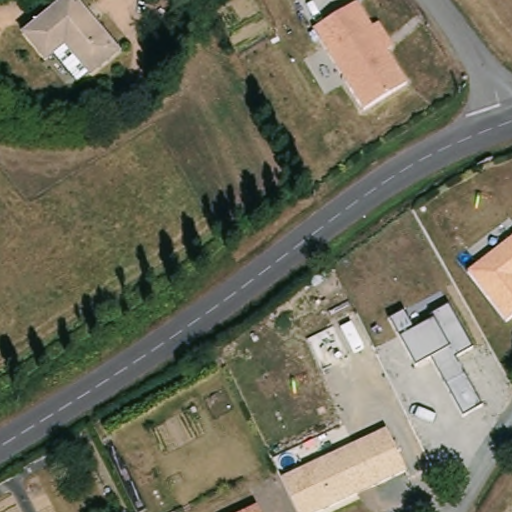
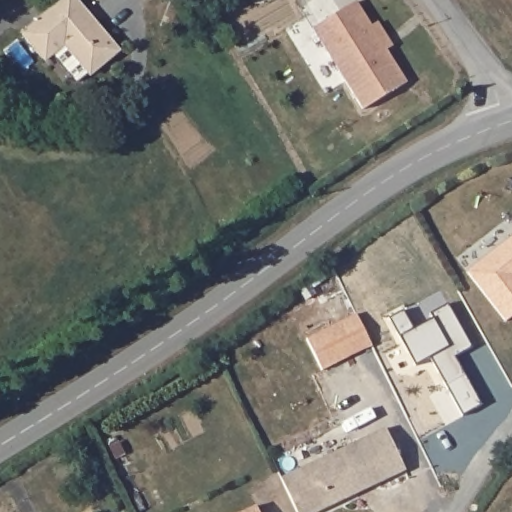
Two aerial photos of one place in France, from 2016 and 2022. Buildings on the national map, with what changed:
unchanged [(65,0),(78,0),(118,49),(121,52),(95,76),(88,69),(68,44),(60,50),(47,60),(25,34),(36,24),(65,0)]
unchanged [(356,0),(357,0),(372,25),(378,21),(394,46),(387,51),(408,84),(363,112),(311,29),(356,0)]
unchanged [(512,236),(512,330),(511,331),(466,273),(512,236)]
unchanged [(401,310),(414,330),(433,319),(431,313),(447,305),(470,346),(452,356),(463,373),(444,384),(429,357),(413,365),(388,318),(401,310)]
new [(354,309),(369,340),(347,351),(320,365),(305,334),(331,320),(354,309)]
unchanged [(406,471),(319,512),(297,512),(281,478),(386,428),(406,471)]
unchanged [(241,512),(255,506),(259,512),(241,512)]

